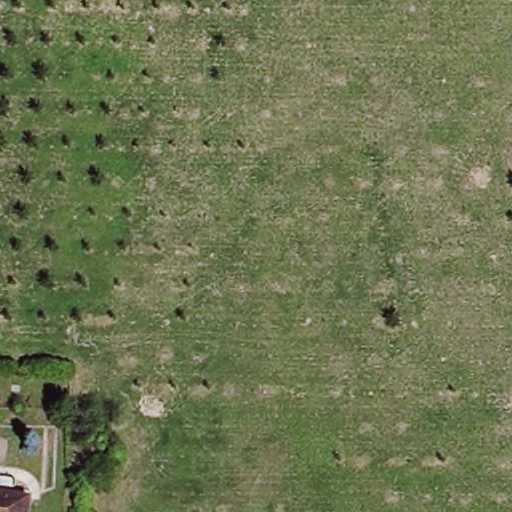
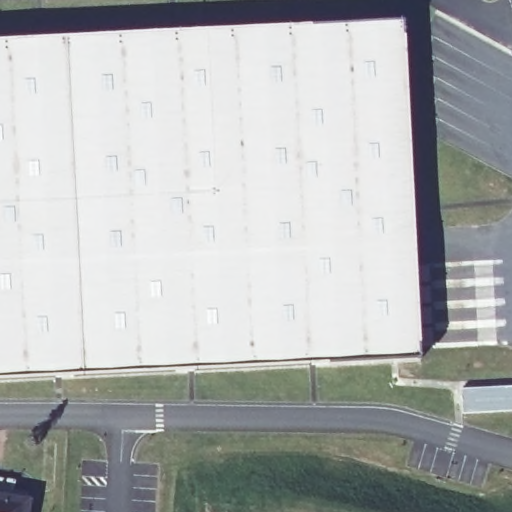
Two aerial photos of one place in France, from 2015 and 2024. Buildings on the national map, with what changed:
new [(421,357),(0,379),(0,40),(405,19),(421,357)]
new [(464,413),(462,389),(512,386),(512,410),(464,413)]
unchanged [(26,512),(0,512),(0,495),(28,500),(26,512)]

